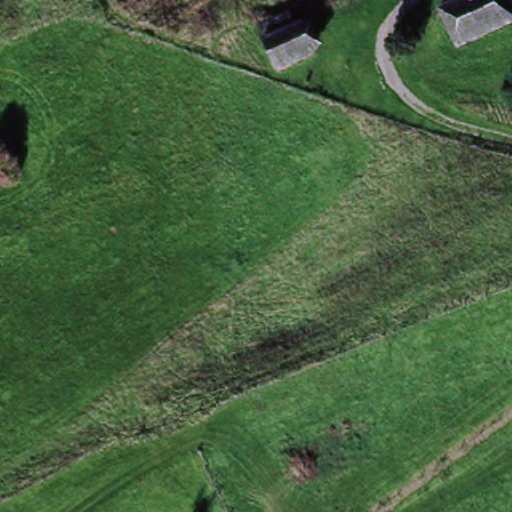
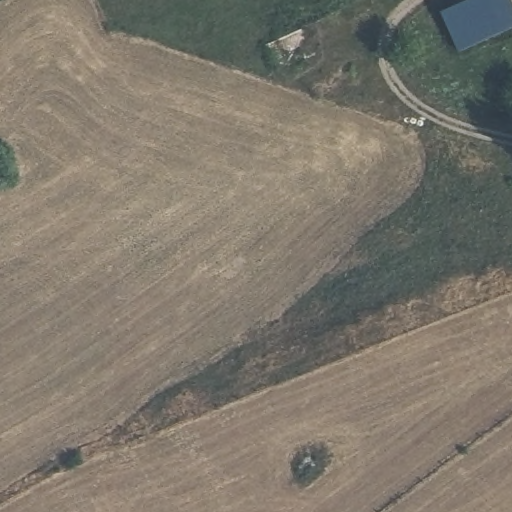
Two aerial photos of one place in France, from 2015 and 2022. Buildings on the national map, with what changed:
unchanged [(458,0),(504,0),(512,19),(512,25),(452,47),(437,11),(458,0)]
unchanged [(283,77),(269,51),(303,34),(316,58),(283,77)]

